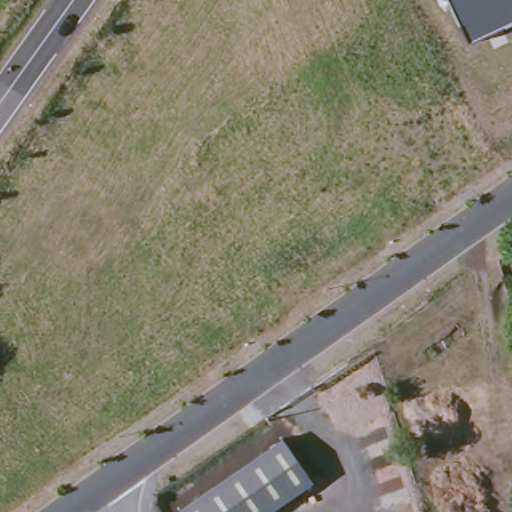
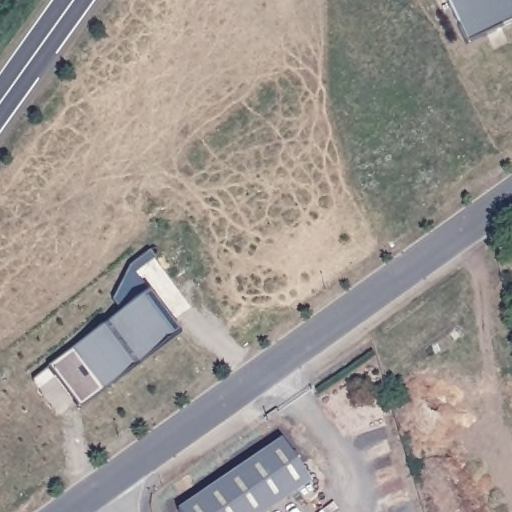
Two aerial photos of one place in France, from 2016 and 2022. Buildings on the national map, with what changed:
unchanged [(468,42),(448,0),(512,0),(512,21),(468,42)]
new [(79,408),(50,370),(149,293),(178,332),(79,408)]
unchanged [(176,507),(280,436),(310,480),(263,512),(178,512),(176,507)]

